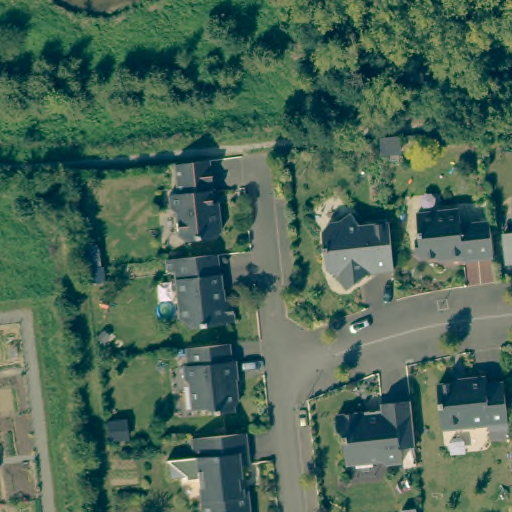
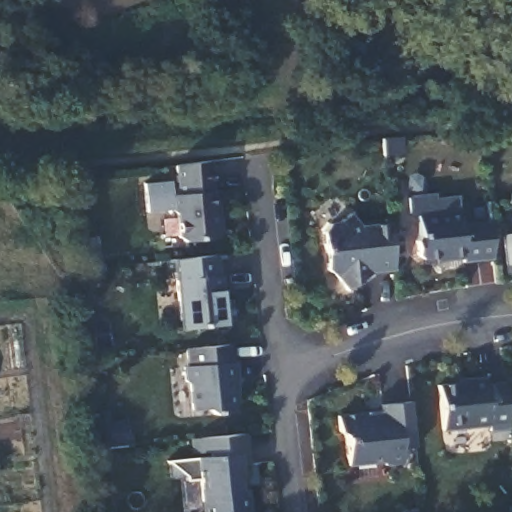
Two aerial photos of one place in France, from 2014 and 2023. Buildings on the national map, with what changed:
unchanged [(382,156),(380,139),(397,138),(398,154),(382,156)]
unchanged [(209,161),(212,192),(210,193),(211,204),(218,204),(221,233),(216,239),(184,242),(179,238),(176,214),(171,210),(169,196),(178,195),(175,166),(175,165),(209,161)]
unchanged [(463,263),(463,259),(452,260),(448,257),(423,259),(417,255),(416,242),(419,238),(417,214),(459,209),(460,225),(489,222),(490,232),(493,259),(463,263)]
unchanged [(394,275),(373,277),(347,296),(336,282),(327,274),(323,238),(333,235),(337,229),(351,219),(360,232),(389,229),(394,275)]
unchanged [(217,260),(220,296),(223,296),(224,306),(231,305),(234,328),(224,328),(224,330),(190,334),(180,325),(175,279),(172,278),(167,278),(165,265),(217,260)]
unchanged [(196,348),(229,345),(230,362),(234,362),(236,381),(230,382),(231,389),(236,393),(237,404),(233,409),(233,413),(213,414),(206,409),(193,411),(190,385),(186,382),(184,367),(188,367),(186,349),(196,348)]
unchanged [(509,429),(489,431),(489,425),(442,431),(438,386),(466,383),(465,380),(486,378),(487,385),(504,384),(509,429)]
unchanged [(415,447),(400,449),(402,464),(385,466),(381,463),(347,466),(344,436),(338,432),(337,417),(365,414),(365,413),(381,411),(381,405),(410,402),(411,402),(415,447)]
unchanged [(245,434),(249,465),(240,466),(240,467),(240,468),(240,469),(240,472),(240,473),(239,477),(237,479),(238,490),(247,489),(250,512),(202,512),(199,483),(198,481),(186,482),(186,478),(171,479),(169,464),(166,462),(210,457),(209,453),(193,454),(192,439),(245,434)]
unchanged [(402,512),(417,509),(417,512),(402,512)]

